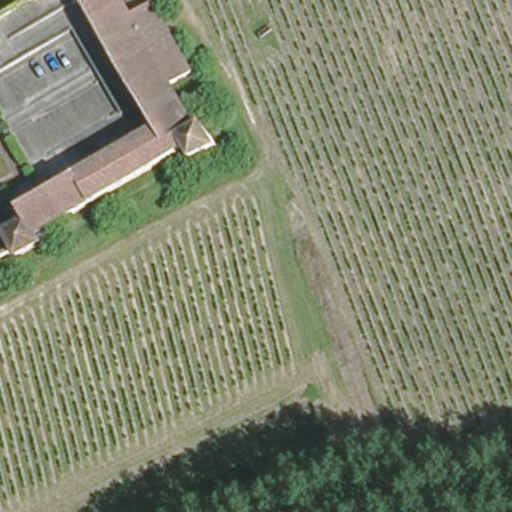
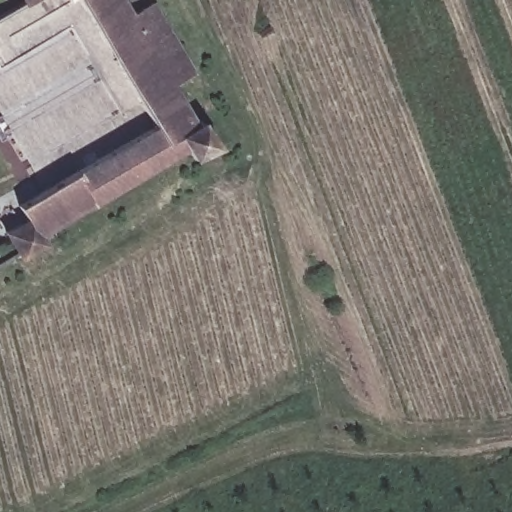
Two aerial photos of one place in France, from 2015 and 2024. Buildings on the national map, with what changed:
unchanged [(139,0),(153,0),(190,69),(174,78),(191,115),(202,112),(211,140),(188,155),(185,145),(34,234),(39,245),(19,254),(15,247),(1,228),(23,215),(18,196),(152,120),(80,0),(127,0),(130,4),(139,0)]

